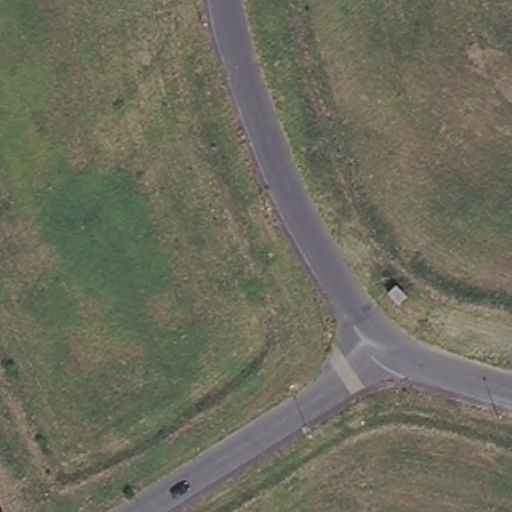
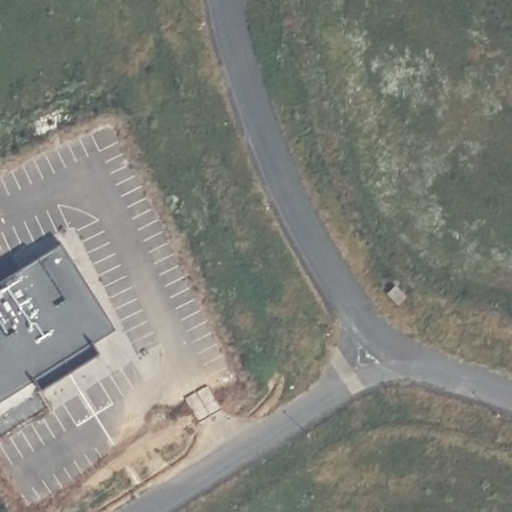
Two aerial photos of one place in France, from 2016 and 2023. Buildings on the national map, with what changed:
new [(65,235),(120,319),(73,351),(81,361),(44,386),(37,375),(3,396),(0,391),(0,277),(65,235)]
unchanged [(406,297),(397,304),(387,293),(395,285),(406,297)]

